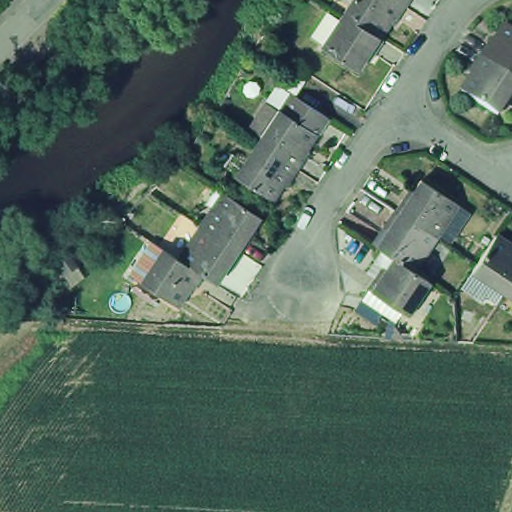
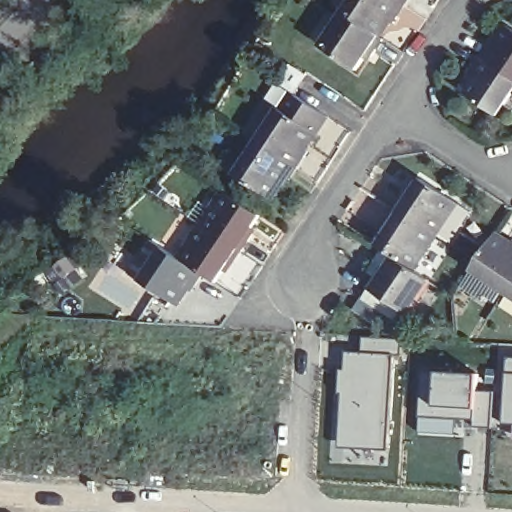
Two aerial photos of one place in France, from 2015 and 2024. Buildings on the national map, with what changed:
unchanged [(389,0),(397,6),(386,23),(382,21),(372,36),(336,13),(345,0),(389,0)]
unchanged [(389,0),(401,0),(397,6),(389,0)]
unchanged [(372,36),(376,39),(364,57),(360,54),(350,70),(314,46),(336,13),(372,36)]
unchanged [(482,44),(487,47),(497,31),(512,41),(512,87),(512,88),(472,61),(482,44)]
unchanged [(512,88),(490,121),(454,98),(465,81),(460,79),(472,61),(512,88)]
unchanged [(304,75),(292,91),(279,83),(290,66),(304,75)]
unchanged [(234,131),(253,102),(265,110),(267,108),(302,131),(292,147),(296,150),(284,168),(245,141),(245,139),(234,131)]
unchanged [(284,168),(272,185),(269,183),(257,199),(222,174),(245,141),(284,168)]
unchanged [(384,234),(380,233),(392,215),(404,198),(407,200),(418,184),(453,208),(466,216),(444,249),(431,241),(409,274),(390,262),(374,251),(384,234)]
unchanged [(226,200),(262,224),(251,240),(255,244),(244,260),(204,234),(226,200)]
unchanged [(204,283),(181,267),(204,234),(244,260),(232,278),(227,275),(217,291),(204,283)]
unchanged [(464,270),(468,264),(488,234),(505,245),(507,241),(512,244),(512,271),(497,293),(464,270)]
unchanged [(204,283),(192,300),(188,298),(177,314),(141,290),(142,289),(134,284),(156,250),(164,256),(181,267),(204,283)]
unchanged [(74,268),(62,278),(52,265),(65,256),(74,268)]
unchanged [(404,319),(364,293),(375,275),(380,278),(390,262),(409,274),(426,285),(404,319)]
unchanged [(512,271),(512,303),(497,293),(512,271)]
new [(347,449),(342,371),(348,372),(348,354),(393,353),(388,451),(347,449)]
new [(512,360),(512,426),(500,426),(509,360),(512,360)]
new [(494,393),(493,427),(476,428),(475,419),(454,419),(455,436),(420,434),(420,399),(437,405),(439,374),(480,375),(480,393),(494,393)]

